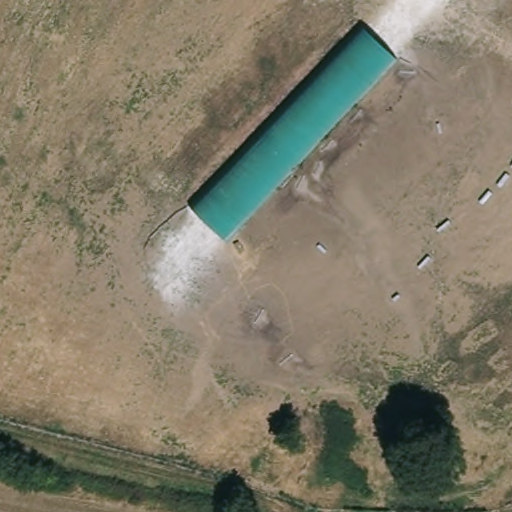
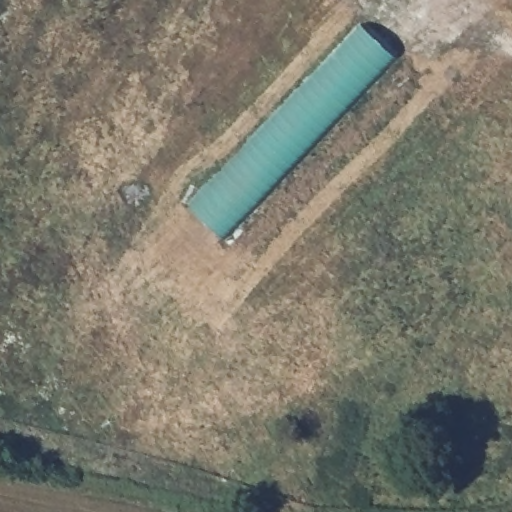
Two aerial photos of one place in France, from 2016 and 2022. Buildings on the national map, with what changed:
unchanged [(192,206),(363,28),(391,55),(223,235),(192,206)]

